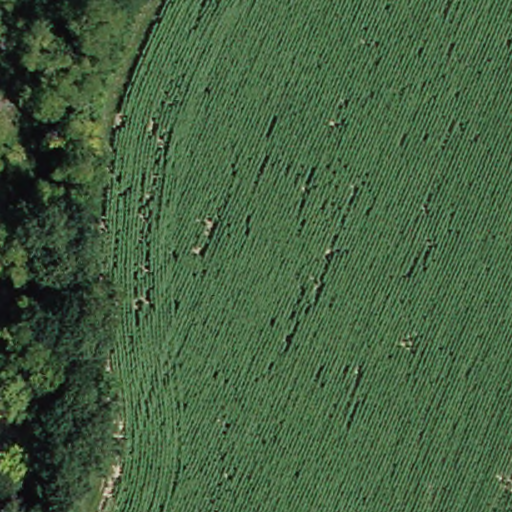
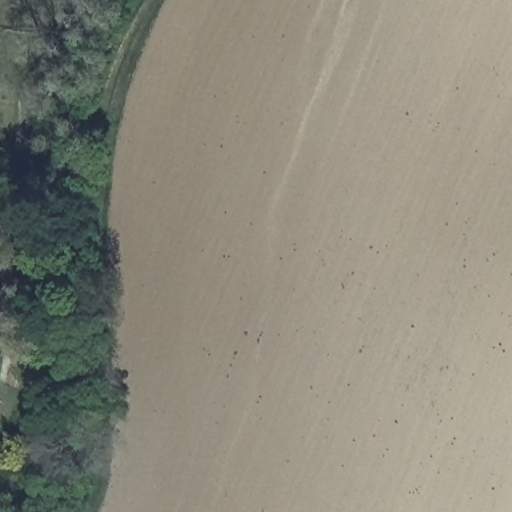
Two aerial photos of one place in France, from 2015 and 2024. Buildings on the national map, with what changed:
unchanged [(0,436),(0,407),(18,411),(14,438),(0,436)]

